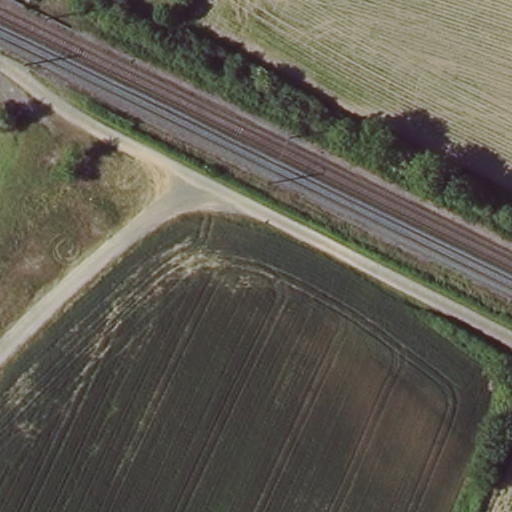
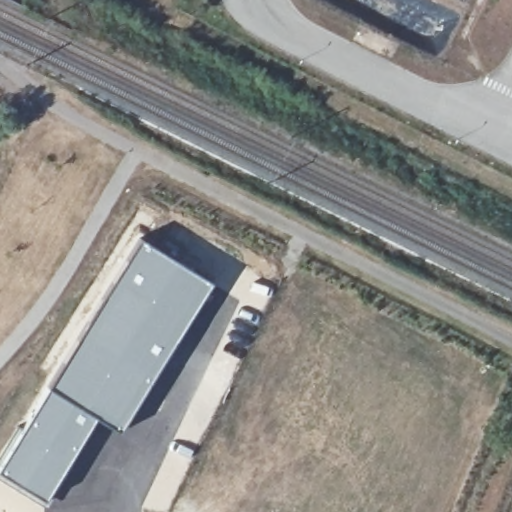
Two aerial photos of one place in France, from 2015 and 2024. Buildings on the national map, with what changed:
new [(140,237),(211,282),(172,347),(118,430),(97,416),(48,385),(140,237)]
new [(48,385),(97,416),(45,500),(0,474),(0,461),(48,385)]

